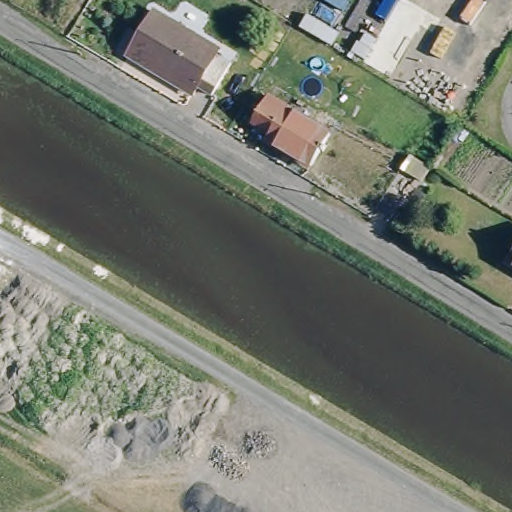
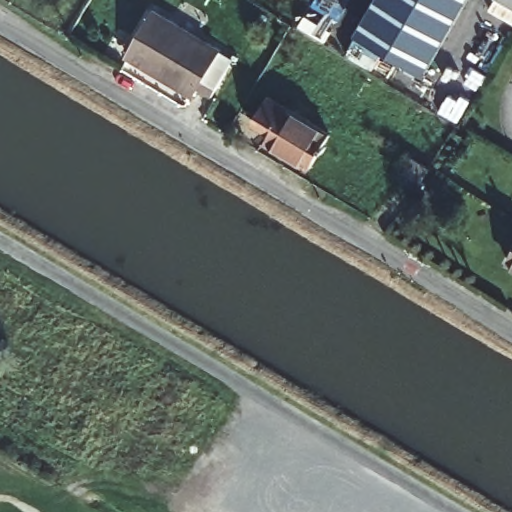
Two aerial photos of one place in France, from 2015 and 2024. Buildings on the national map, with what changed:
new [(360,28),(376,0),(470,0),(427,74),(392,53),(395,48),(360,28)]
unchanged [(228,69),(212,97),(194,87),(191,93),(124,54),(151,9),(216,49),(210,60),(228,69)]
unchanged [(327,134),(309,164),(247,127),(265,98),(327,134)]
unchanged [(512,259),(512,262),(511,261),(512,259)]

